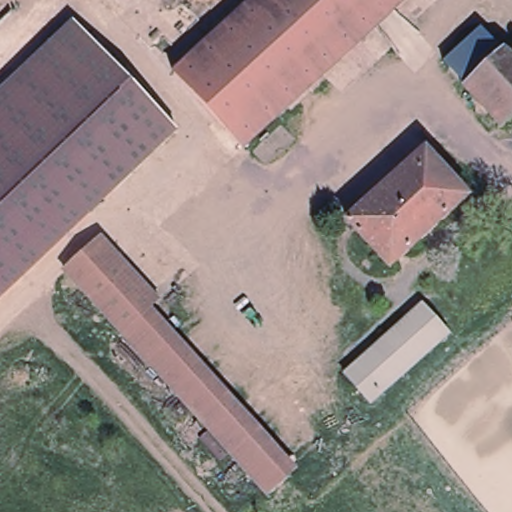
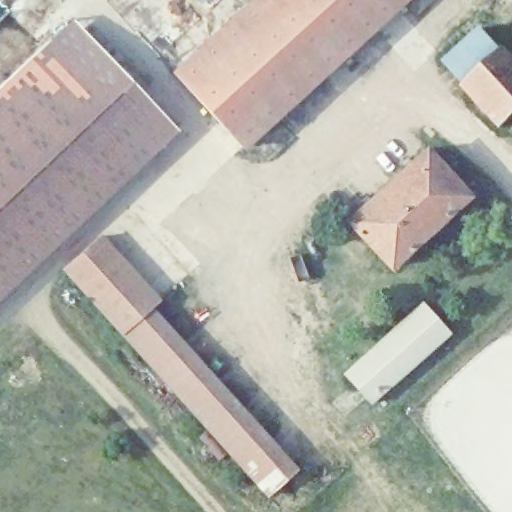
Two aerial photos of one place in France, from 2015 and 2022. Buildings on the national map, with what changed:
unchanged [(250,147),(184,73),(265,0),(413,0),(250,147)]
unchanged [(78,19),(181,132),(159,152),(55,39),(78,19)]
unchanged [(509,50),(472,85),(451,62),(489,29),(509,50)]
unchanged [(159,152),(0,298),(0,89),(55,39),(159,152)]
unchanged [(512,120),(507,124),(472,85),(509,50),(512,52),(512,120)]
unchanged [(474,195),(398,265),(354,219),(432,148),(474,195)]
unchanged [(65,270),(101,236),(160,298),(146,311),(165,332),(141,353),(65,270)]
unchanged [(424,301),(456,335),(380,408),(344,375),(424,301)]
unchanged [(165,332),(302,471),(273,497),(141,353),(165,332)]

